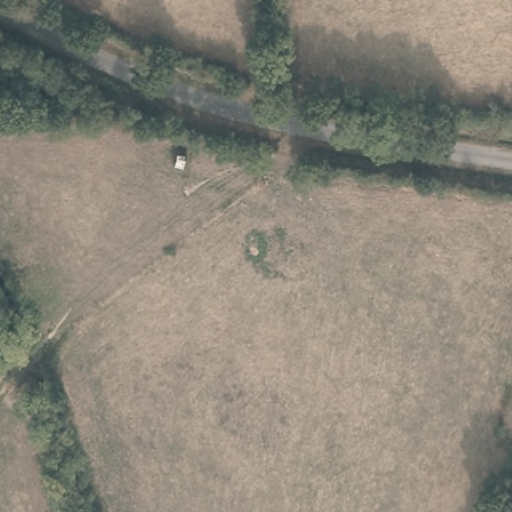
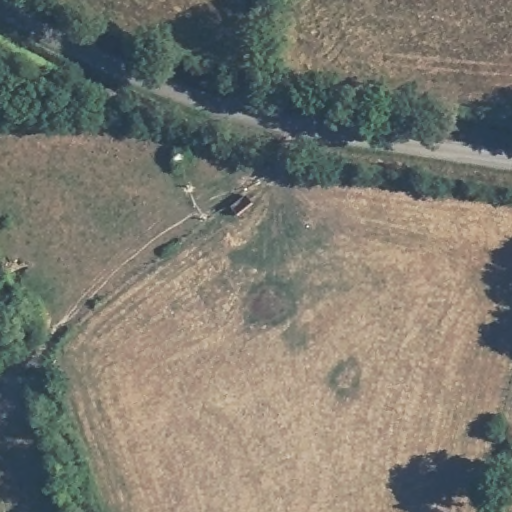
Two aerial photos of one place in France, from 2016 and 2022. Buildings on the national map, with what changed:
[]

